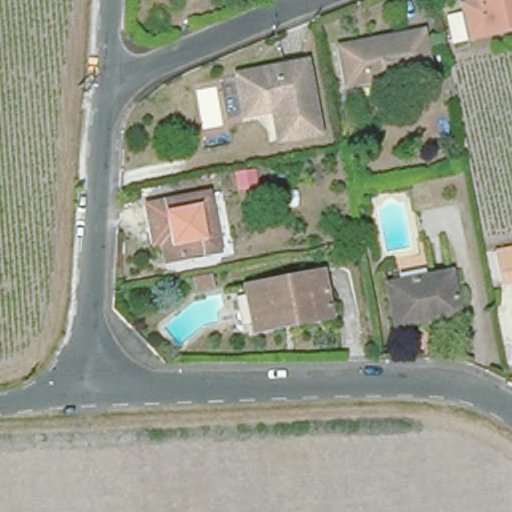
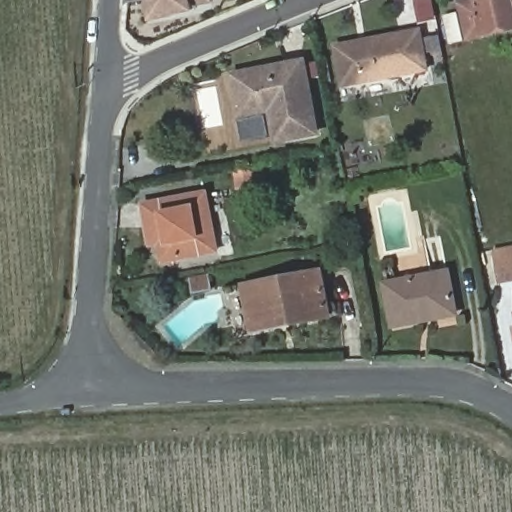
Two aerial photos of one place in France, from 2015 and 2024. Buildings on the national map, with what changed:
new [(214,3),(194,7),(194,11),(172,16),(172,18),(149,23),(149,20),(145,0),(213,0),(214,3)]
unchanged [(468,37),(455,40),(450,16),(463,13),(461,1),(467,0),(512,0),(512,31),(468,40),(468,37)]
unchanged [(335,46),(420,30),(426,70),(342,86),(335,46)]
unchanged [(232,79),(302,65),(317,138),(274,146),(268,117),(239,122),(232,79)]
unchanged [(229,190),(232,201),(214,204),(211,193),(229,190)]
unchanged [(152,208),(205,198),(216,255),(162,265),(152,208)]
unchanged [(512,249),(512,281),(500,283),(494,252),(512,249)]
unchanged [(242,287),(318,272),(327,315),(251,330),(242,287)]
unchanged [(383,284),(447,272),(456,314),(392,327),(383,284)]
unchanged [(204,274),(206,286),(194,289),(191,276),(204,274)]

